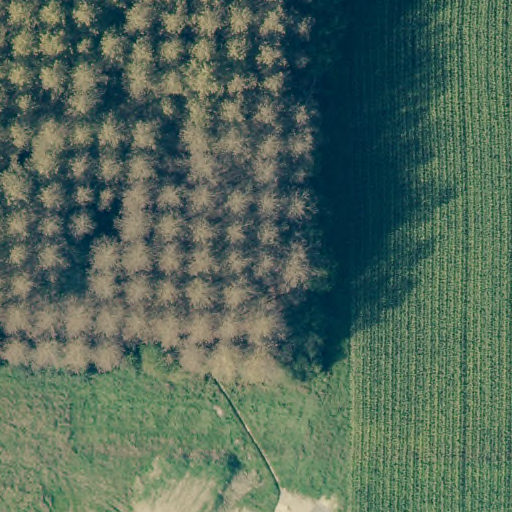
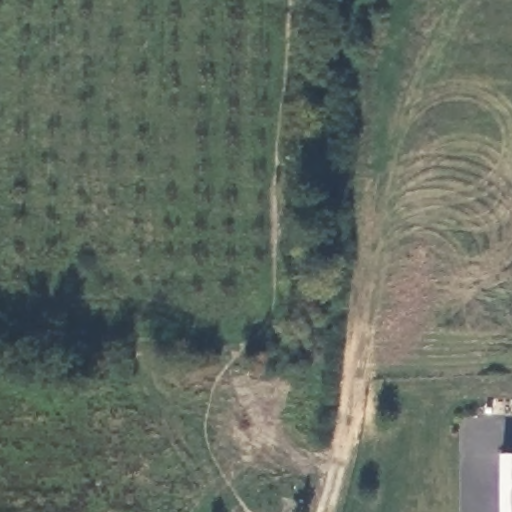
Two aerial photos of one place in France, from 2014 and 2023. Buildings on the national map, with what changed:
new [(502,457),(512,456),(512,512),(502,512),(502,457)]

